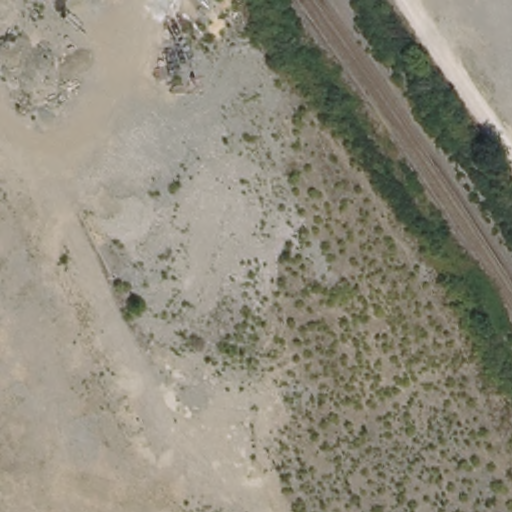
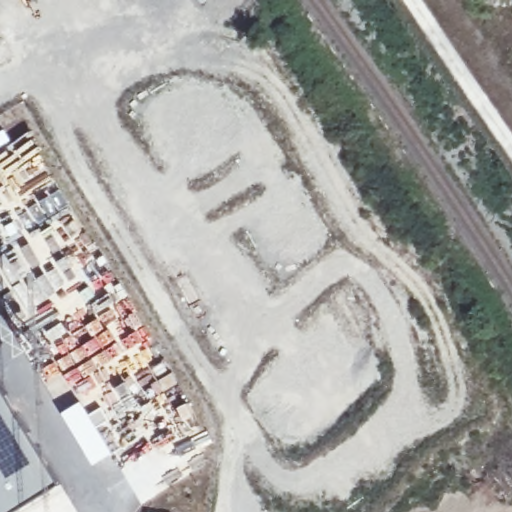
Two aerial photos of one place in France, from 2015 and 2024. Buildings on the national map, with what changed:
new [(15,512),(0,512),(0,388),(58,484),(15,512)]
new [(80,400),(88,412),(100,405),(108,419),(96,427),(112,453),(92,465),(60,411),(80,400)]

